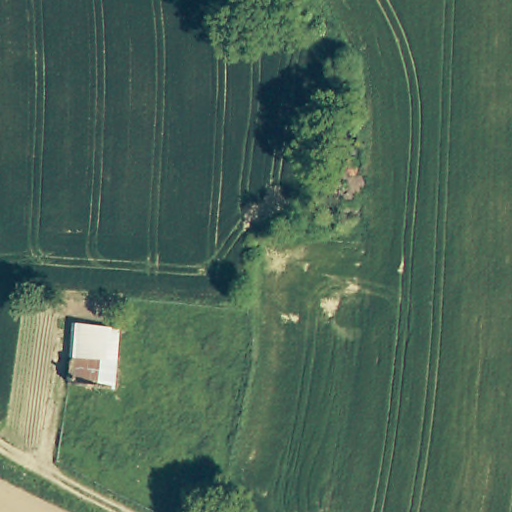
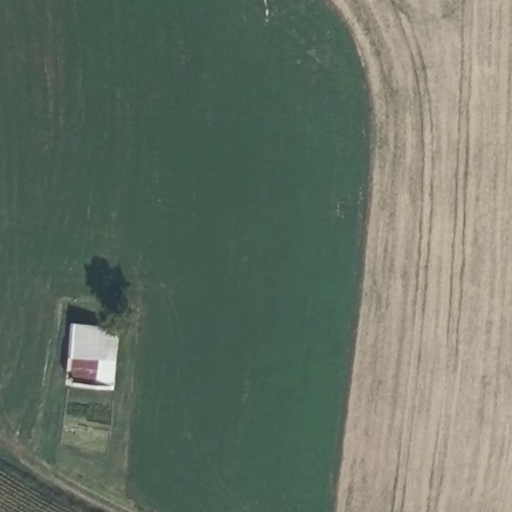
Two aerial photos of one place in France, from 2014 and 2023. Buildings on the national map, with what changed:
unchanged [(112,386),(70,386),(68,326),(114,326),(112,386)]

